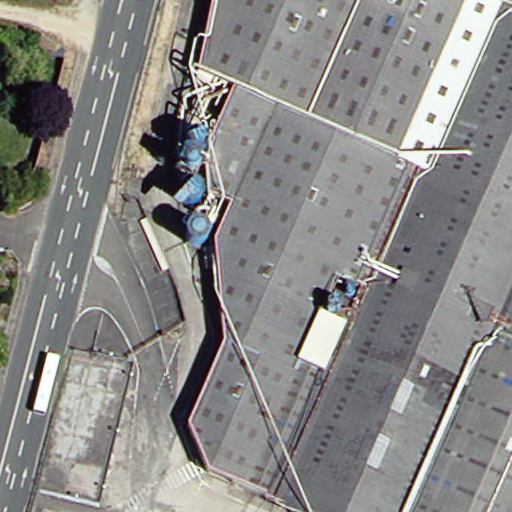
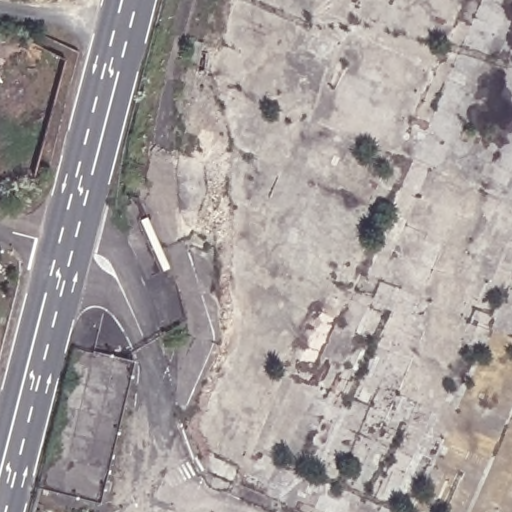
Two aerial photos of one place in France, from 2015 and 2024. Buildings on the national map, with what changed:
demolished [(265,503),(201,471),(185,429),(221,347),(200,245),(173,247),(172,147),(203,146),(226,86),(184,73),(194,40),(205,41),(214,0),(512,0),(512,512),(283,512),(265,503)]
unchanged [(126,377),(105,483),(120,485),(114,512),(49,512),(78,368),(126,377)]

